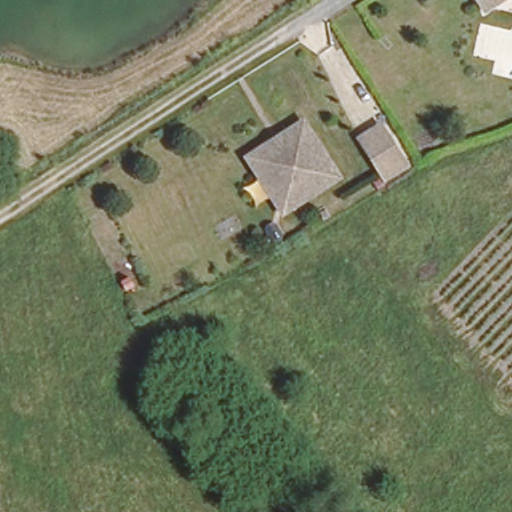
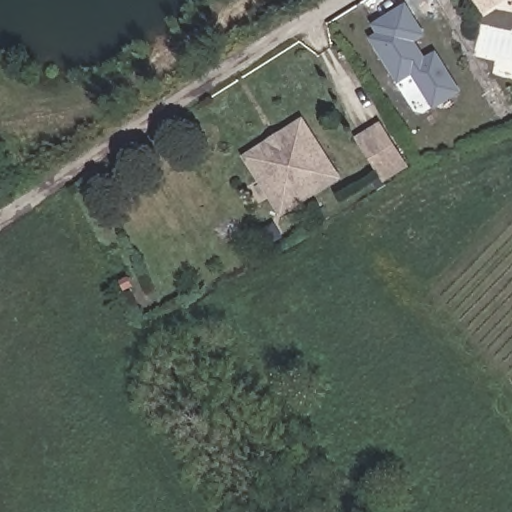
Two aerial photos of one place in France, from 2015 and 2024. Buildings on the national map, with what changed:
unchanged [(512,2),(507,1),(483,15),(473,0),(512,0),(512,2)]
new [(426,66),(440,57),(462,93),(433,110),(412,76),(398,84),(373,44),(386,35),(379,25),(405,9),(408,14),(411,11),(425,34),(411,42),(426,66)]
unchanged [(305,119),(343,182),(282,219),(242,156),(305,119)]
unchanged [(381,124),(409,171),(382,185),(356,140),(381,124)]

